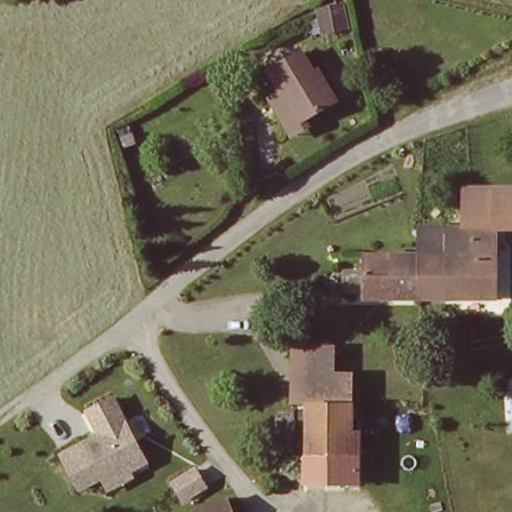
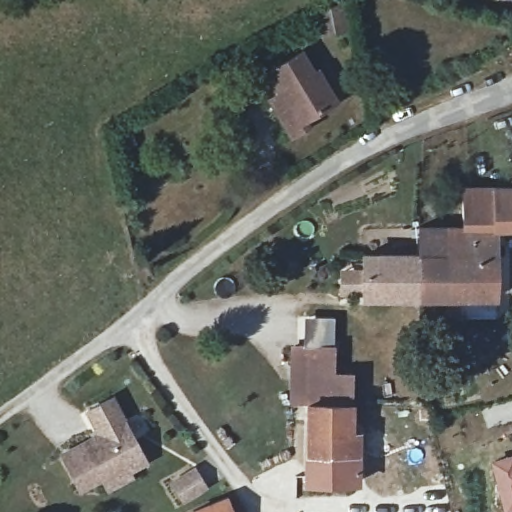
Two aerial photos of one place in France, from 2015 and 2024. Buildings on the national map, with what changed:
unchanged [(315,4),(339,0),(344,24),(319,28),(315,4)]
unchanged [(293,51),(306,73),(311,70),(333,103),(297,124),(259,73),(293,51)]
unchanged [(287,140),(283,132),(297,124),(301,131),(287,140)]
unchanged [(495,229),(463,228),(464,183),(494,182),(495,229)]
unchanged [(495,232),(495,229),(494,182),(512,182),(512,233),(495,232)]
unchanged [(419,256),(414,227),(463,228),(495,229),(495,232),(494,300),(419,300),(419,256)]
unchanged [(419,300),(361,300),(361,256),(419,256),(419,300)]
unchanged [(306,406),(289,405),(291,346),(306,347),(337,347),(337,377),(354,377),(354,403),(354,430),(306,430),(306,406)]
unchanged [(109,488),(105,483),(83,493),(63,455),(98,436),(85,412),(116,396),(151,466),(109,488)]
unchanged [(306,430),(354,430),(353,453),(306,454),(306,430)]
unchanged [(361,452),(361,482),(306,483),(306,454),(353,453),(361,452)]
new [(512,452),(512,510),(504,511),(503,512),(488,458),(512,452)]
unchanged [(184,503),(173,478),(198,468),(211,491),(184,503)]
unchanged [(190,509),(224,498),(229,512),(191,512),(190,509)]
new [(512,510),(512,512),(505,512),(504,511),(512,510)]

